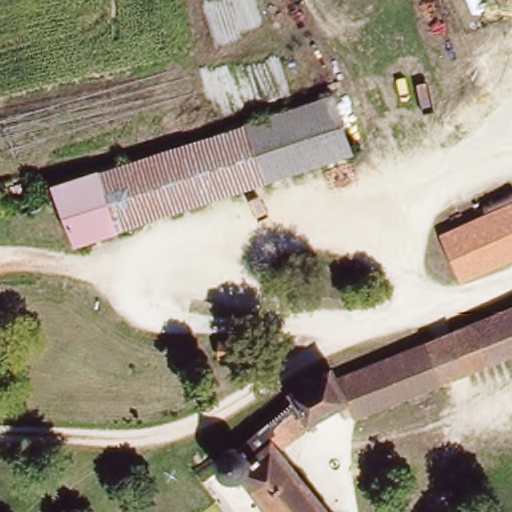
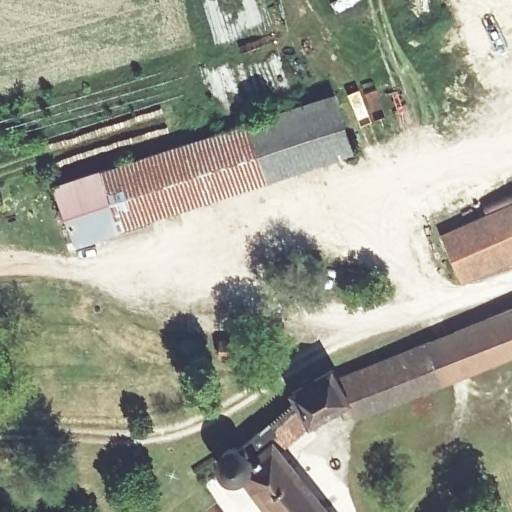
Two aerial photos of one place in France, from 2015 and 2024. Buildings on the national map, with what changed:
unchanged [(318,105),(312,89),(334,82),(355,151),(302,167),(285,115),(318,105)]
unchanged [(285,115),(302,167),(151,214),(135,161),(285,115)]
unchanged [(85,235),(73,200),(67,182),(135,161),(151,214),(85,235)]
unchanged [(463,276),(446,234),(512,205),(512,255),(463,276)]
unchanged [(365,412),(360,401),(347,373),(512,319),(512,359),(365,412)]
unchanged [(302,387),(343,366),(347,373),(360,401),(320,420),(307,399),(302,387)]
unchanged [(307,399),(320,420),(326,431),(293,453),(273,425),(307,399)]
unchanged [(214,467),(219,455),(229,447),(246,446),(273,425),(293,453),(333,512),(270,512),(250,488),(230,484),(217,478),(214,467)]

